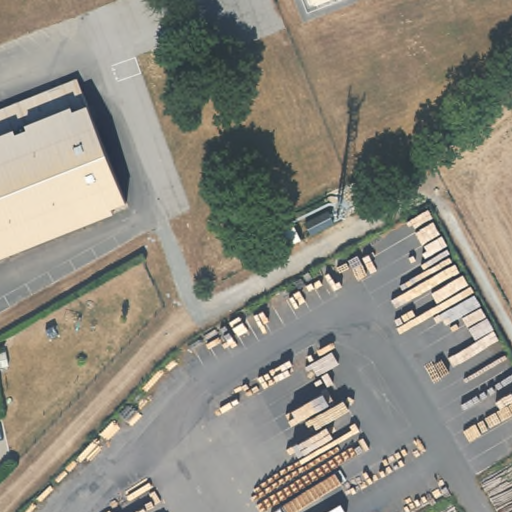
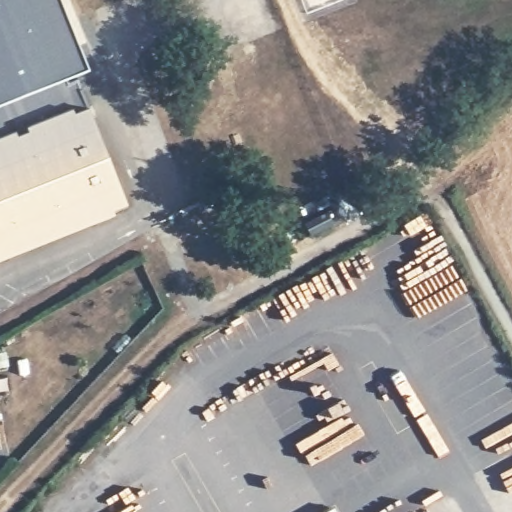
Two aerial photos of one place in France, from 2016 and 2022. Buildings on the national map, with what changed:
new [(69,76),(71,84),(0,114),(0,0),(61,0),(87,68),(69,76)]
demolished [(349,0),(307,12),(302,0),(349,0)]
unchanged [(76,82),(88,111),(130,215),(0,266),(0,114),(76,82)]

